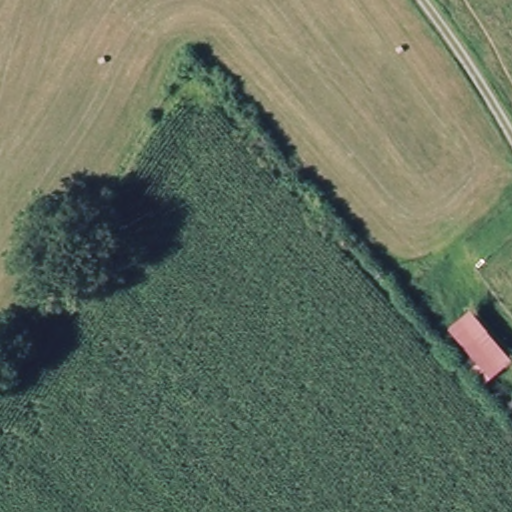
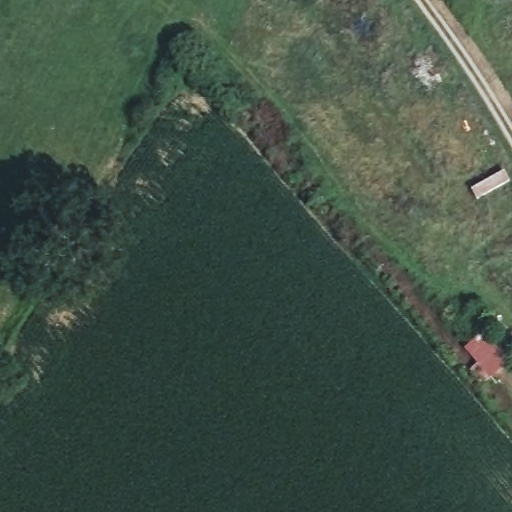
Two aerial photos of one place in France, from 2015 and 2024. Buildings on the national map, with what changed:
unchanged [(512,360),(490,378),(447,328),(469,310),(512,360)]

